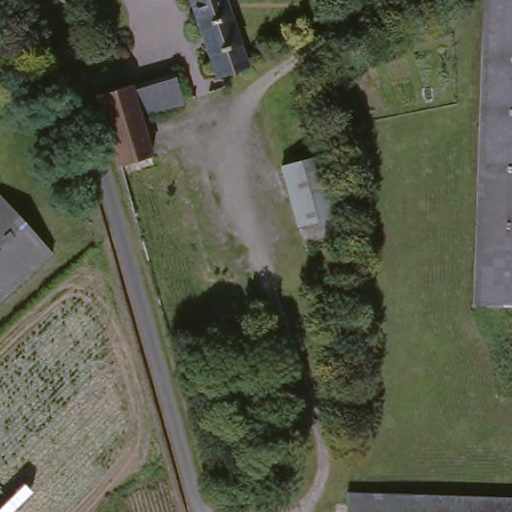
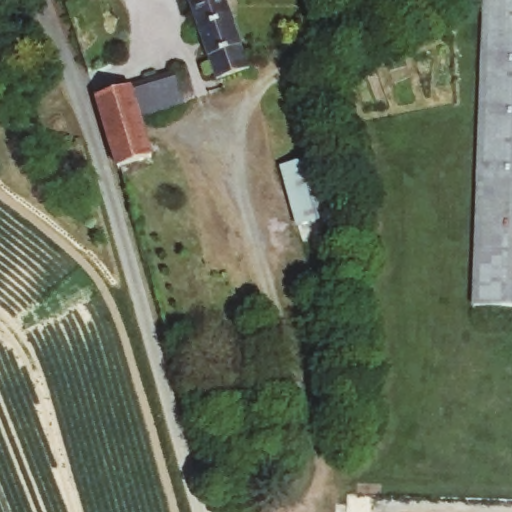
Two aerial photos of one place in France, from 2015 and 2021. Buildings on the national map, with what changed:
unchanged [(249,57),(216,68),(192,0),(230,0),(249,57)]
unchanged [(512,307),(476,307),(481,0),(512,0),(512,307)]
unchanged [(173,71),(182,96),(161,104),(152,79),(173,71)]
unchanged [(98,95),(149,81),(156,101),(139,106),(151,154),(121,162),(98,95)]
unchanged [(334,215),(299,223),(282,164),(317,155),(334,215)]
demolished [(51,251),(0,297),(0,195),(51,251)]
unchanged [(512,512),(348,512),(349,496),(512,502),(512,512)]

